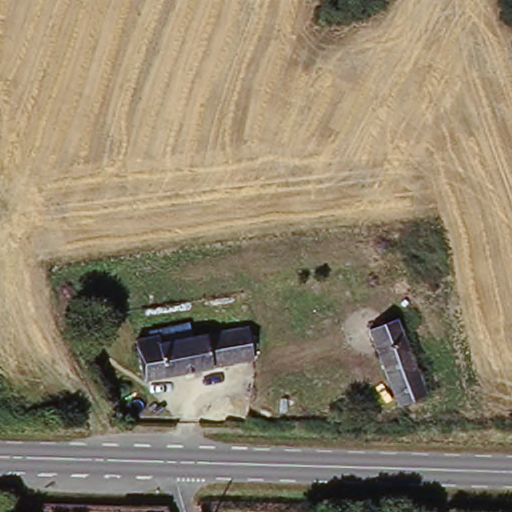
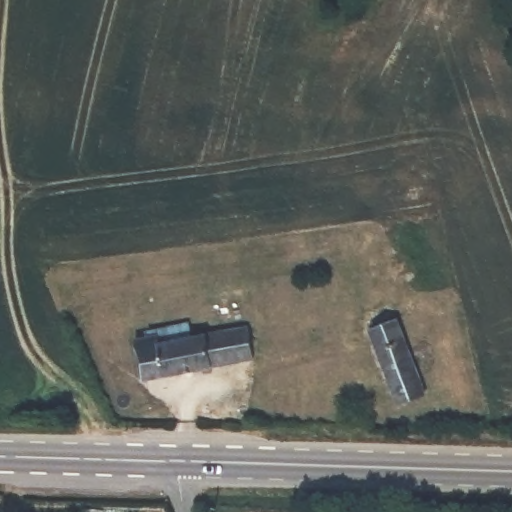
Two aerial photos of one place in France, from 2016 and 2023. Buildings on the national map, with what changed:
unchanged [(430,398),(399,410),(370,335),(397,323),(430,398)]
unchanged [(145,384),(135,342),(153,340),(152,332),(172,328),(177,345),(247,333),(253,363),(145,384)]

